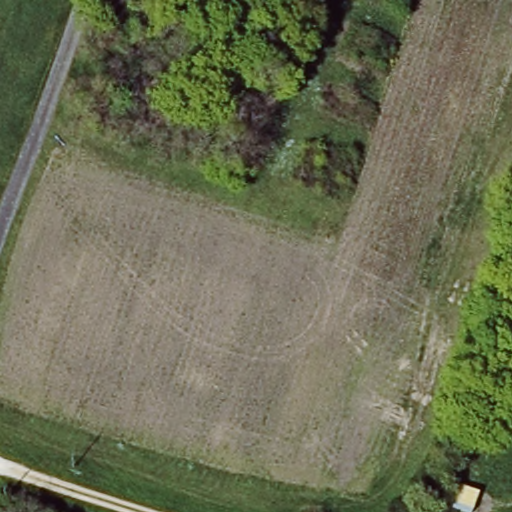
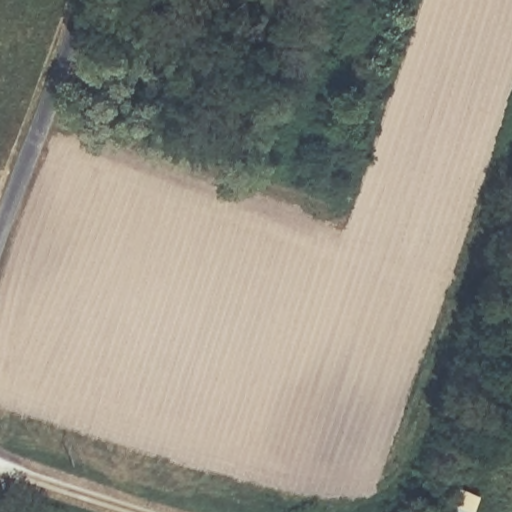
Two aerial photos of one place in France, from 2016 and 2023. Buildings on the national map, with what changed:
unchanged [(466,512),(445,505),(453,479),(479,487),(471,512),(466,512)]

